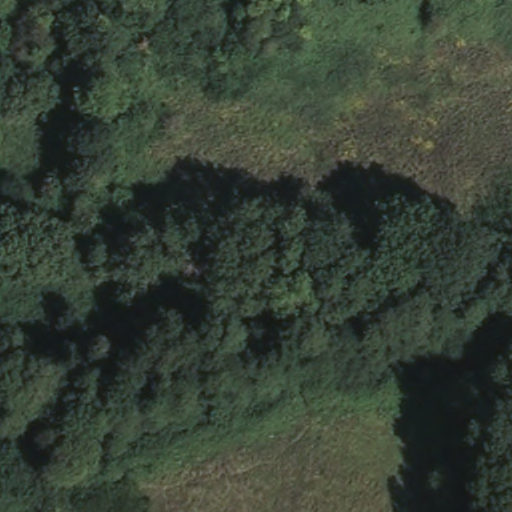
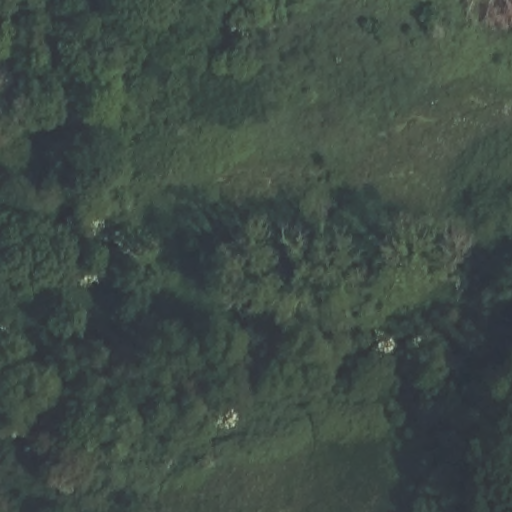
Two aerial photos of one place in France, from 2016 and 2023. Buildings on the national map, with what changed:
[]

